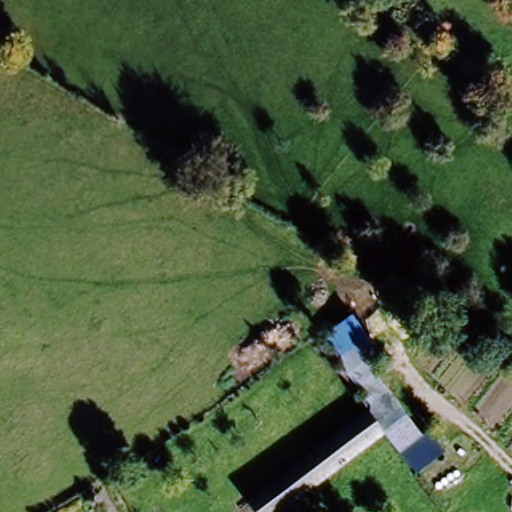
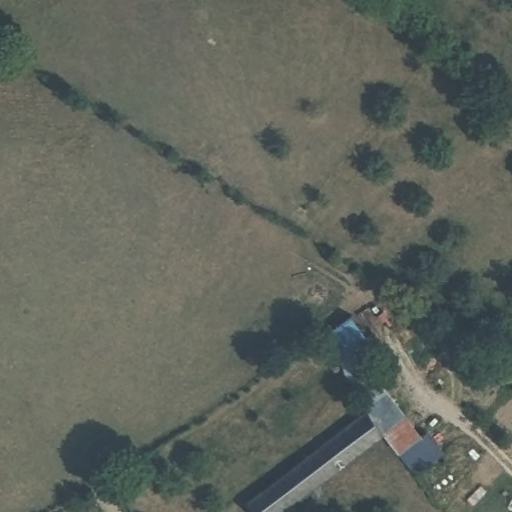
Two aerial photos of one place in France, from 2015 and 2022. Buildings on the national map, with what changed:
unchanged [(374,348),(363,361),(423,434),(427,429),(443,448),(418,470),(384,428),(396,419),(381,399),(371,407),(322,347),(352,315),(374,348)]
unchanged [(396,419),(272,512),(259,512),(249,498),(381,399),(396,419)]

